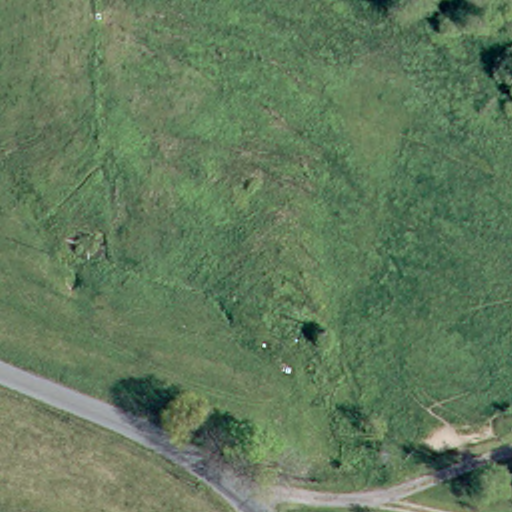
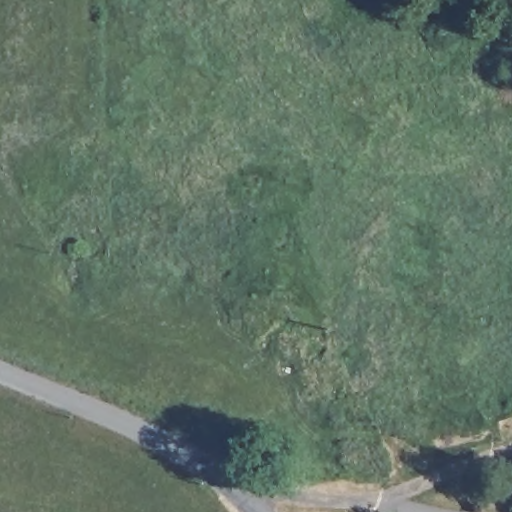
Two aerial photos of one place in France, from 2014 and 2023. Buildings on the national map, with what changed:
[]

